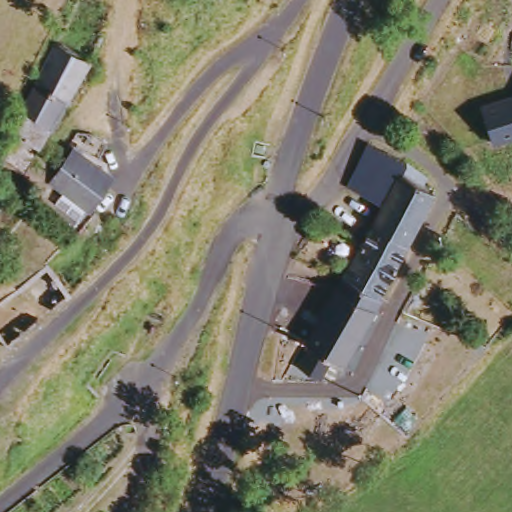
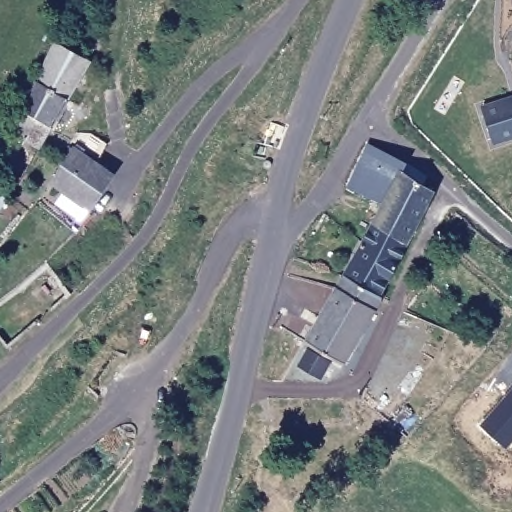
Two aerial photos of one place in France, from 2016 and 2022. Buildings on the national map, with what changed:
unchanged [(63,41),(95,58),(75,99),(44,81),(63,41)]
unchanged [(47,150),(18,133),(30,110),(44,81),(75,99),(70,109),(60,127),(56,134),(47,150)]
unchanged [(492,143),(480,106),(510,97),(512,96),(512,137),(492,143)]
unchanged [(59,203),(67,191),(54,182),(71,155),(67,154),(82,131),(96,133),(112,144),(100,164),(110,171),(117,176),(92,209),(83,220),(59,203)]
unchanged [(384,209),(349,193),(370,148),(408,167),(428,186),(425,193),(437,200),(411,251),(373,229),(384,209)]
unchanged [(309,346),(339,292),(345,282),(364,246),(373,229),(411,251),(384,302),(386,303),(379,316),(376,321),(349,369),(309,346)]
new [(512,392),(512,441),(505,449),(481,428),(512,392)]

